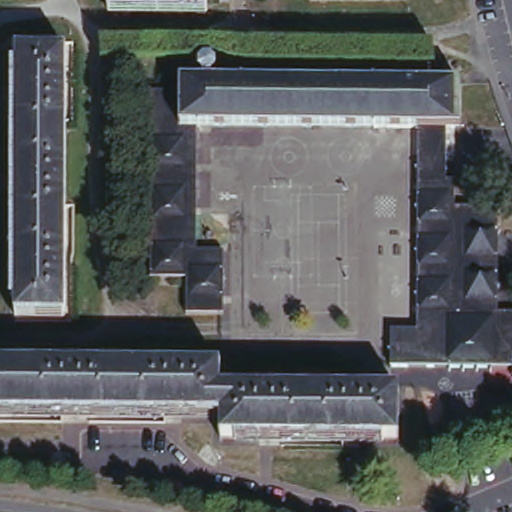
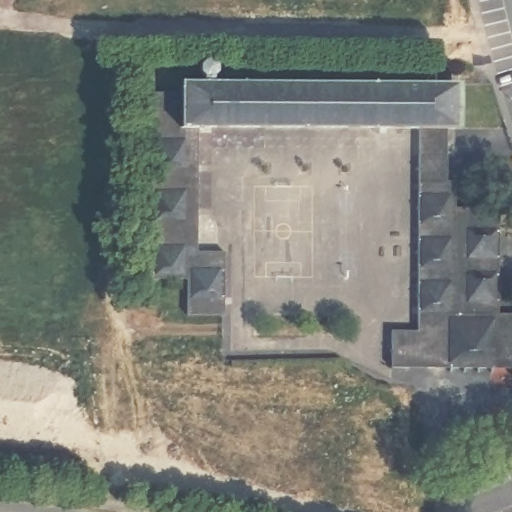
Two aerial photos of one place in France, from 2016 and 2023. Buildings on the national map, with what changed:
demolished [(203,12),(106,11),(106,0),(203,0),(203,12)]
demolished [(64,56),(63,322),(15,321),(15,309),(15,180),(15,136),(16,78),(15,55),(64,56)]
unchanged [(390,364),(390,331),(416,331),(418,129),(196,127),(195,251),(221,252),(221,315),(185,315),(185,279),(149,278),(152,93),(181,93),(181,81),(204,81),(205,75),(203,73),(201,70),(200,68),(201,65),(202,62),(204,60),(208,59),(212,58),(214,60),(216,62),(218,67),(218,70),(216,72),(213,74),(213,81),(454,83),(454,129),(447,129),(446,169),(446,182),(455,182),(455,208),(498,208),(496,316),(512,316),(512,378),(512,377),(512,370),(461,370),(390,369),(390,364)]
demolished [(221,391),(398,392),(398,443),(378,443),(259,443),(219,442),(219,420),(190,420),(60,419),(0,419),(0,368),(222,369),(221,391)]

